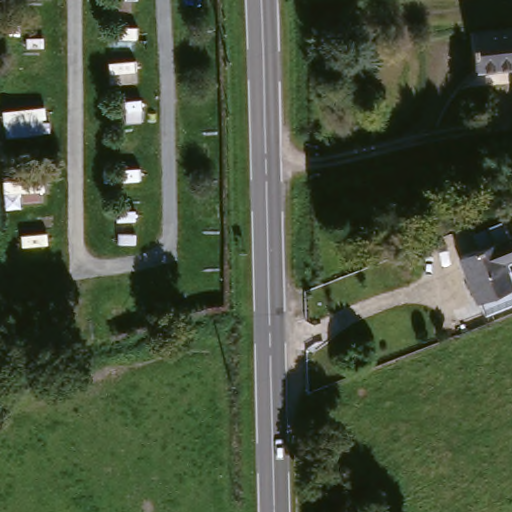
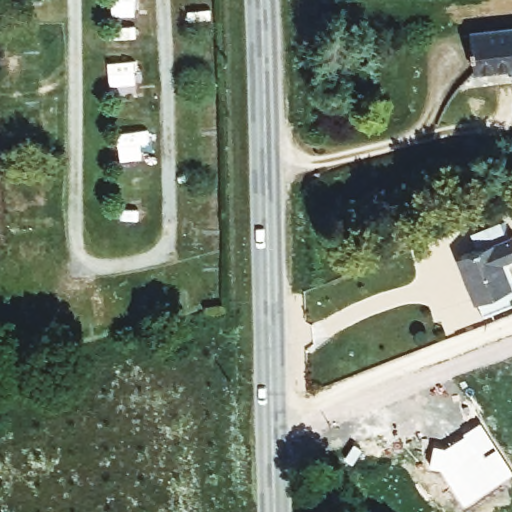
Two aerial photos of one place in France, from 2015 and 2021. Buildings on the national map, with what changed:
unchanged [(473,35),(512,30),(512,69),(476,72),(473,35)]
unchanged [(465,287),(492,276),(484,254),(457,264),(450,247),(506,226),(512,240),(512,293),(474,308),(465,287)]
new [(434,448),(453,453),(458,451),(455,447),(466,441),(464,438),(482,428),(512,479),(463,507),(442,471),(430,469),(434,448)]

